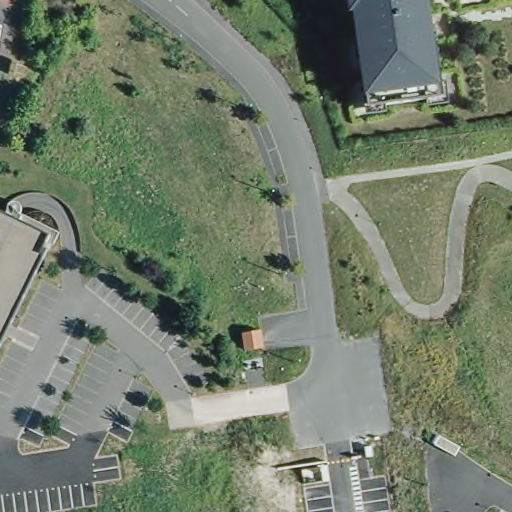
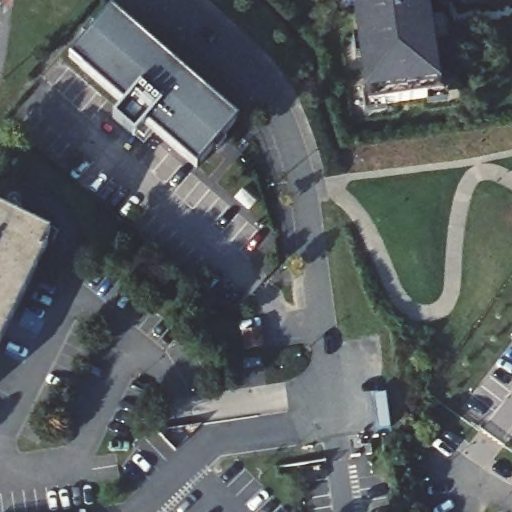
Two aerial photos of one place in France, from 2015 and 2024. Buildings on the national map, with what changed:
unchanged [(428,45),(435,100),(361,109),(355,61),(347,0),(417,0),(423,45),(428,45)]
new [(196,169),(152,130),(144,140),(137,134),(135,137),(112,119),(124,105),(69,57),(85,39),(94,29),(111,10),(238,120),(222,139),(213,150),(196,169)]
unchanged [(41,240),(0,327),(0,221),(41,240)]

